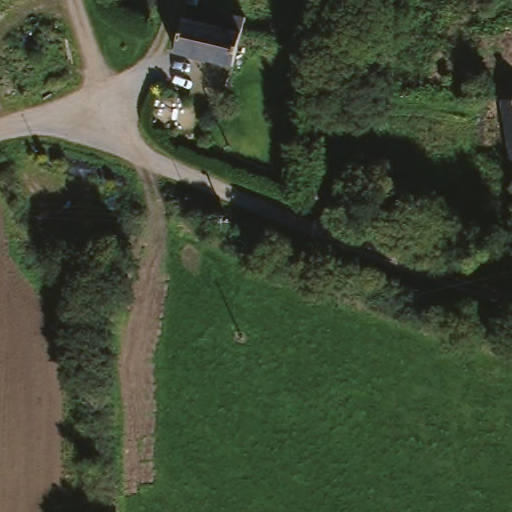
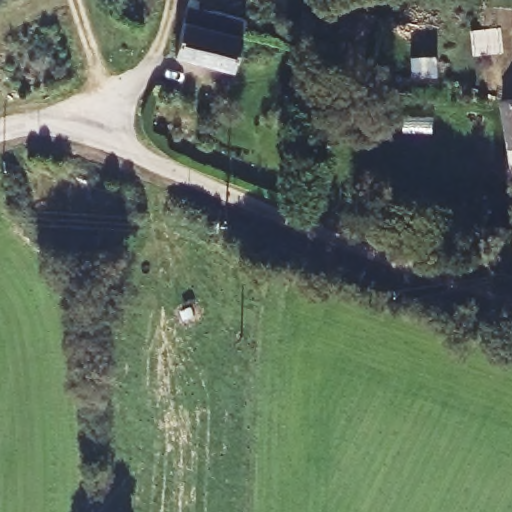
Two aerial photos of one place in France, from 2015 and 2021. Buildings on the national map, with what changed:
unchanged [(231,40),(173,30),(178,10),(241,21),(231,40)]
unchanged [(234,41),(227,71),(166,60),(173,30),(231,40),(234,41)]
unchanged [(512,104),(512,176),(504,177),(503,160),(498,104),(512,104)]

